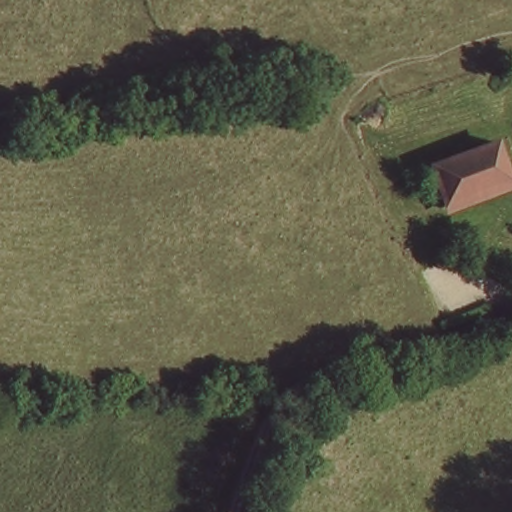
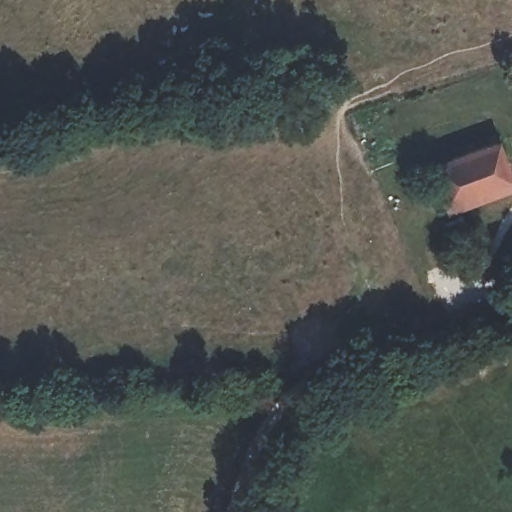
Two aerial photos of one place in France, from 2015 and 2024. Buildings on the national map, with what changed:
unchanged [(502,150),(512,177),(512,185),(451,207),(439,172),(502,150)]

